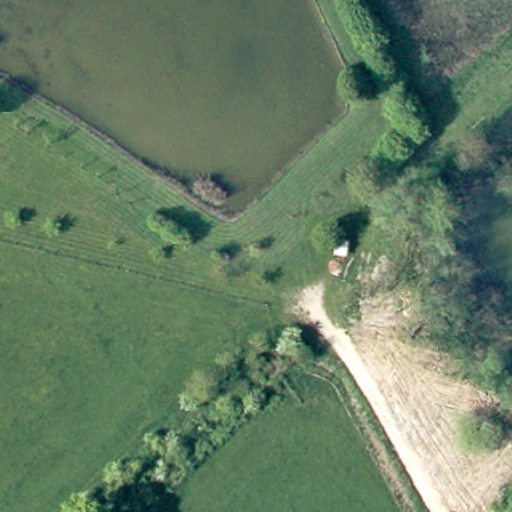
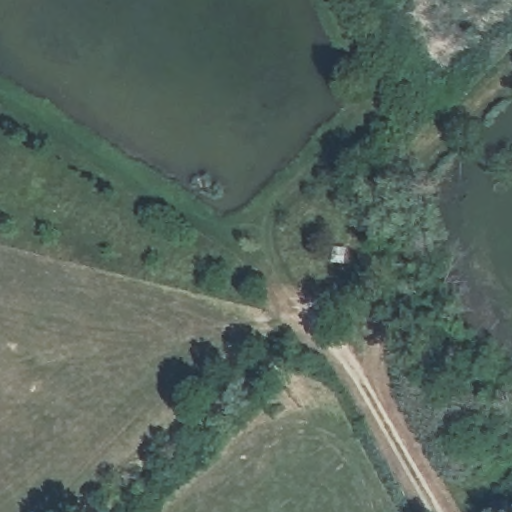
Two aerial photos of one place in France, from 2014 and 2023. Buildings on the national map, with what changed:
[]

